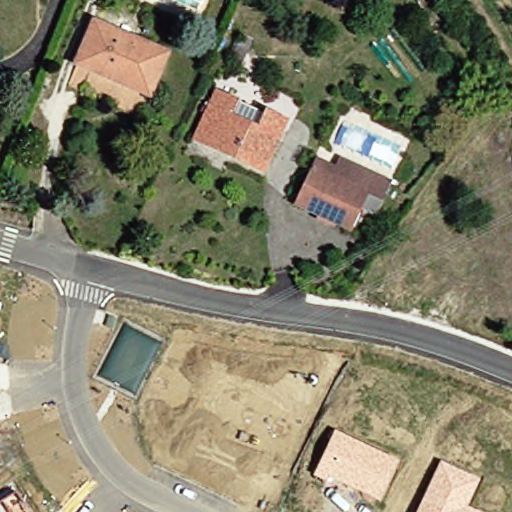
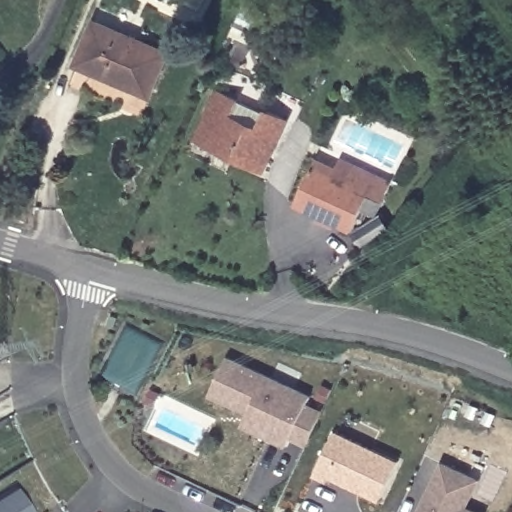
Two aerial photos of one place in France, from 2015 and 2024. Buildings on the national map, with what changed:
unchanged [(153,88),(130,78),(127,83),(80,62),(98,23),(169,53),(153,88)]
unchanged [(235,60),(242,44),(247,34),(255,38),(251,49),(244,64),(235,60)]
unchanged [(245,96),(234,123),(258,133),(270,106),(291,115),(268,167),(202,139),(225,87),(245,96)]
unchanged [(337,167),(341,161),(393,182),(380,215),(364,210),(353,233),(296,204),(316,158),(337,167)]
new [(306,404),(321,412),(305,446),(290,439),(286,447),(241,427),(247,414),(209,396),(226,357),(310,396),(306,404)]
unchanged [(380,500),(328,474),(325,479),(314,474),(335,430),(398,460),(380,500)]
unchanged [(480,479),(466,507),(478,512),(417,512),(441,462),(480,479)]
new [(32,512),(0,512),(0,501),(17,490),(32,512)]

